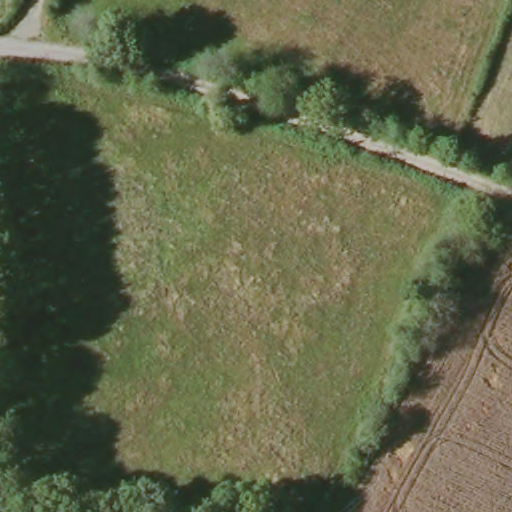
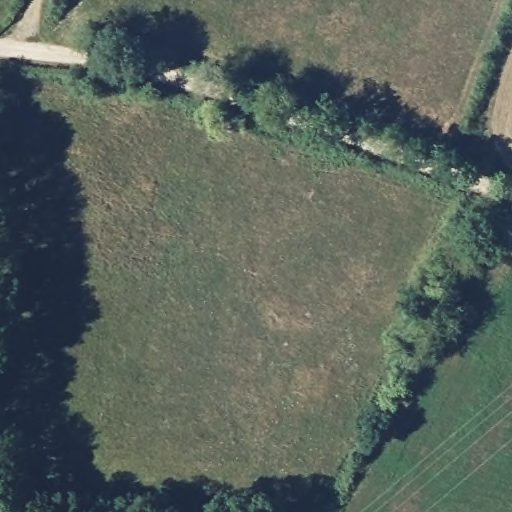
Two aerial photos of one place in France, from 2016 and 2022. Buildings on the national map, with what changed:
[]

